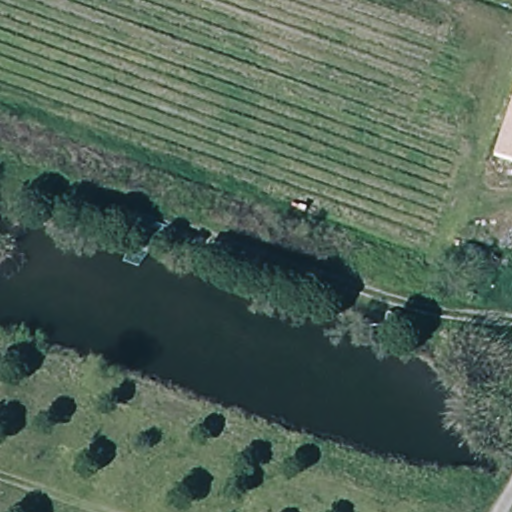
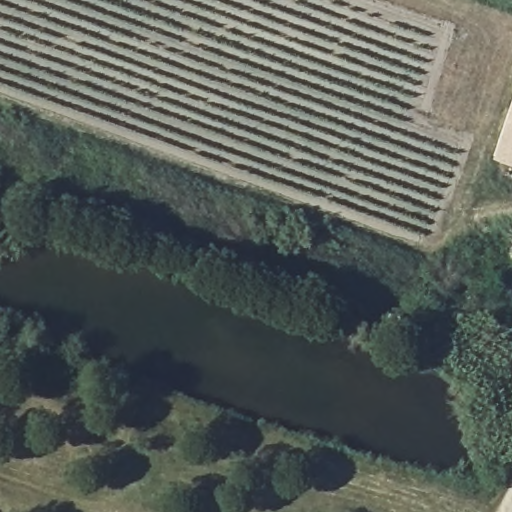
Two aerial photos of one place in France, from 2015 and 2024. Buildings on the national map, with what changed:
unchanged [(512,104),(512,159),(495,153),(512,104)]

